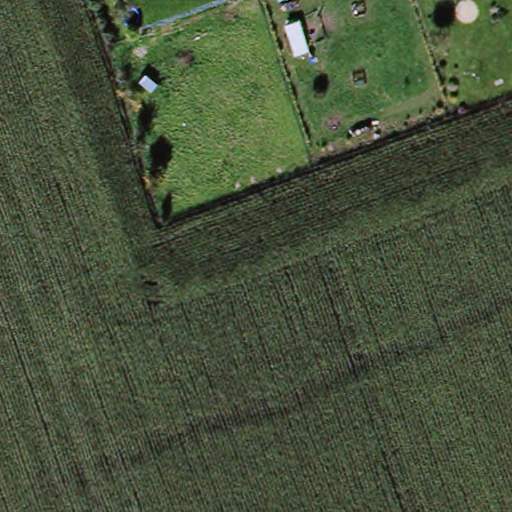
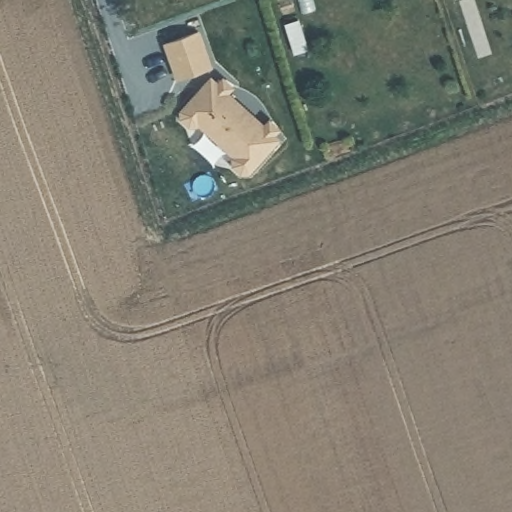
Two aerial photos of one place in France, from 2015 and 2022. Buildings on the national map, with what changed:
new [(201,32),(214,68),(182,80),(169,44),(201,32)]
new [(282,139),(252,172),(245,172),(237,165),(236,158),(238,156),(202,124),(200,126),(193,126),(185,119),(185,112),(214,78),(282,139)]
new [(226,79),(235,87),(230,93),(221,85),(226,79)]
new [(272,120),(282,129),(277,135),(267,126),(272,120)]

